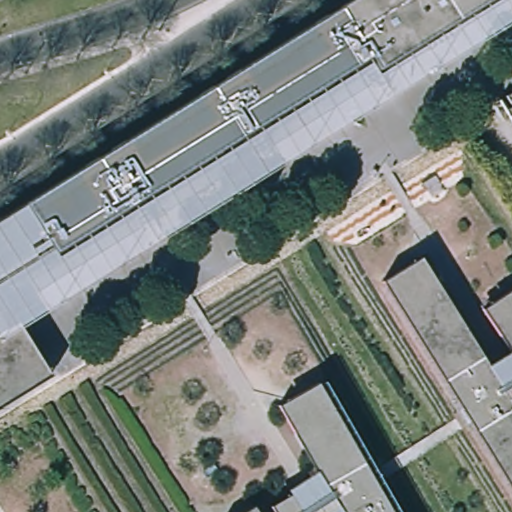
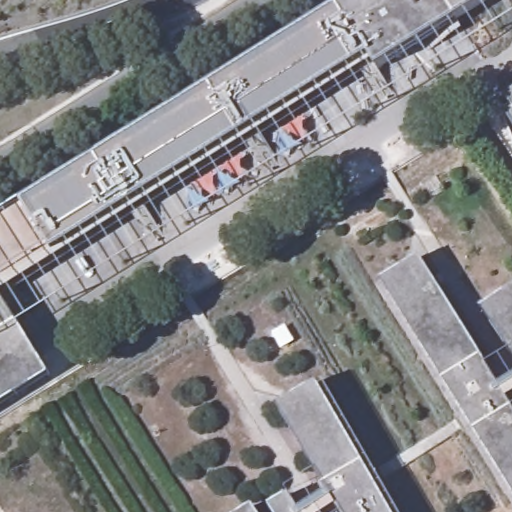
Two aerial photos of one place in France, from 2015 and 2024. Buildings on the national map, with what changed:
unchanged [(346,0),(512,0),(512,17),(20,324),(50,376),(0,405),(0,217),(346,0)]
unchanged [(512,85),(512,129),(493,97),(512,85)]
unchanged [(422,253),(438,281),(429,287),(474,367),(512,434),(512,509),(381,277),(422,253)]
unchanged [(497,335),(479,306),(512,286),(512,341),(505,330),(497,335)]
unchanged [(474,367),(512,343),(512,434),(474,367)]
unchanged [(300,424),(290,430),(274,400),(314,378),(387,512),(348,512),(324,469),(300,424)]
unchanged [(348,512),(294,512),(284,496),(324,469),(348,512)]
unchanged [(284,496),(294,512),(267,512),(264,508),(284,496)]
unchanged [(256,512),(237,512),(251,504),(256,512)]

